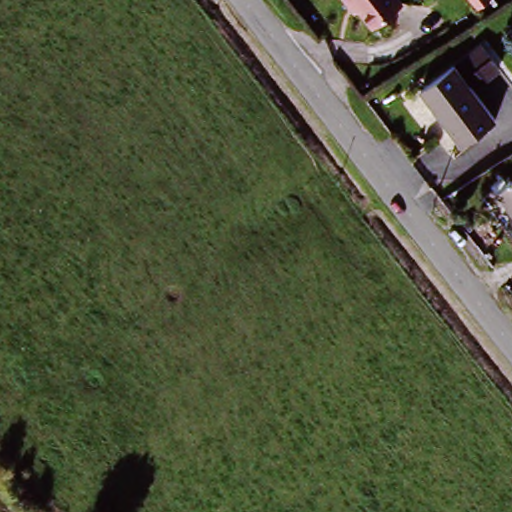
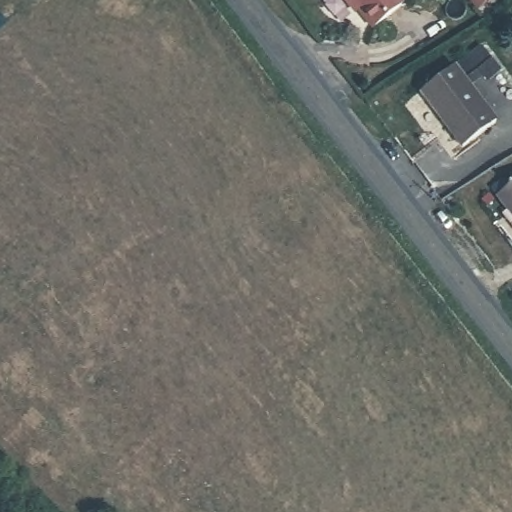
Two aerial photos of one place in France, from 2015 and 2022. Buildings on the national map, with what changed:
unchanged [(375,26),(351,0),(403,0),(405,2),(375,26)]
unchanged [(459,151),(419,96),(453,71),(493,126),(459,151)]
unchanged [(495,197),(512,185),(512,220),(495,197)]

